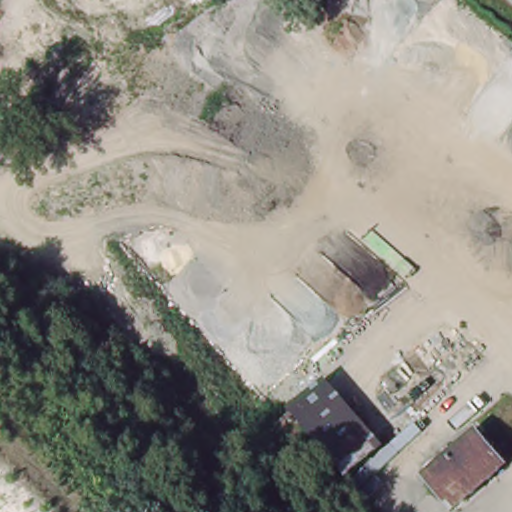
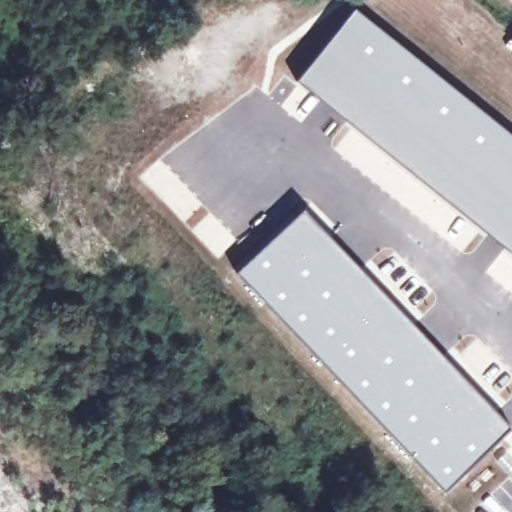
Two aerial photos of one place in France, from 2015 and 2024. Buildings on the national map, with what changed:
new [(297,81),(354,9),(512,135),(512,253),(297,81)]
new [(512,35),(512,49),(505,43),(512,35)]
new [(305,207),(385,294),(511,427),(444,492),(236,271),(305,207)]
unchanged [(329,377),(387,445),(372,458),(313,390),(329,377)]
unchanged [(372,458),(352,475),(294,407),(313,390),(372,458)]
demolished [(460,445),(466,452),(491,430),(512,454),(512,469),(467,508),(440,475),(457,460),(450,453),(460,445)]

